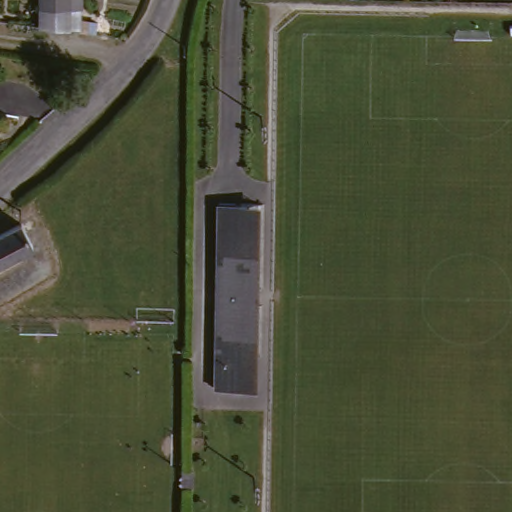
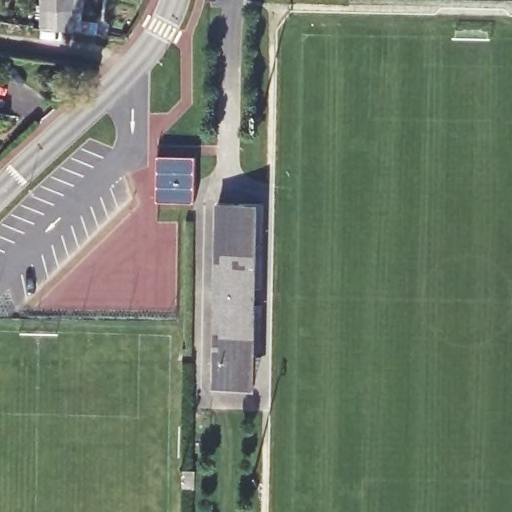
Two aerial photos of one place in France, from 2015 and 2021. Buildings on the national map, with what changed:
unchanged [(63,13),(36,13),(36,0),(79,0),(79,33),(63,31),(63,13)]
new [(157,156),(196,157),(195,204),(157,203),(157,156)]
unchanged [(235,395),(215,395),(215,207),(235,207),(235,395)]
unchanged [(258,363),(250,363),(251,396),(235,395),(235,207),(260,208),(258,363)]
unchanged [(21,229),(31,250),(17,258),(0,268),(0,240),(21,229)]
unchanged [(196,472),(195,492),(183,490),(183,472),(196,472)]

